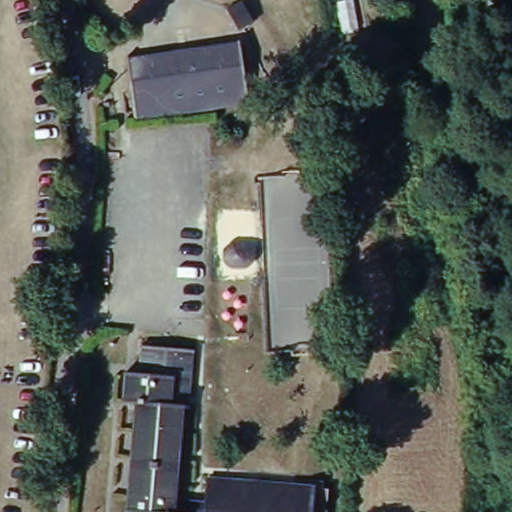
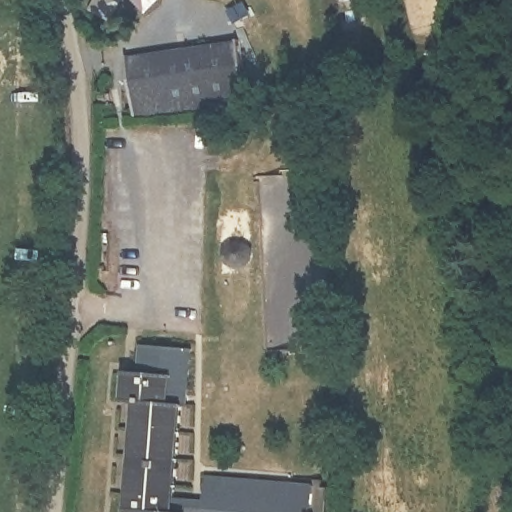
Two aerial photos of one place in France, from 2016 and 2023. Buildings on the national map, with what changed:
unchanged [(110,0),(111,17),(89,21),(85,0),(110,0)]
unchanged [(127,59),(237,40),(245,95),(138,119),(127,59)]
unchanged [(117,509),(130,401),(114,399),(118,369),(140,373),(144,348),(196,354),(189,409),(181,411),(172,497),(201,499),(206,477),(313,487),(311,512),(133,512),(117,509)]

